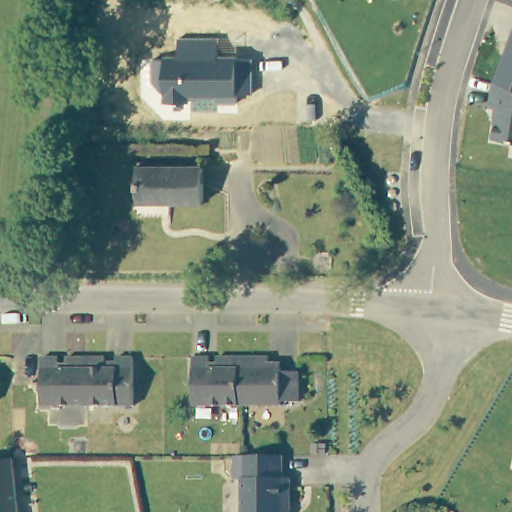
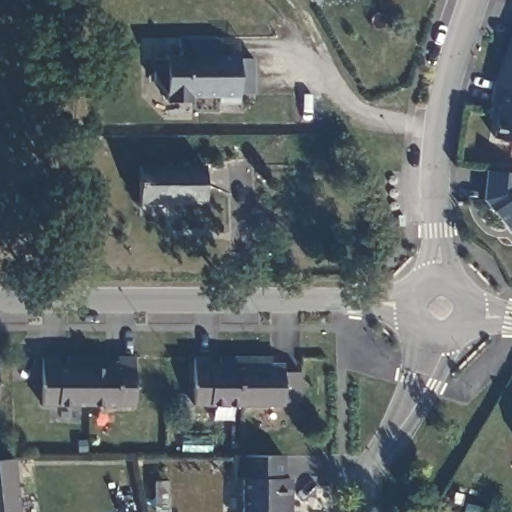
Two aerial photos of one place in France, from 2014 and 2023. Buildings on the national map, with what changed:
unchanged [(492,138),(494,106),(488,106),(492,81),(512,26),(512,140),(492,138)]
unchanged [(237,94),(237,103),(216,103),(216,96),(190,97),(190,101),(165,101),(165,92),(152,81),(152,59),(162,59),(162,56),(179,55),(180,38),(219,39),(220,55),(237,55),(237,59),(252,59),(252,92),(237,94)]
unchanged [(210,198),(143,200),(142,162),(210,160),(210,198)]
new [(512,171),(512,236),(491,212),(483,200),(486,169),(512,171)]
unchanged [(194,356),(212,355),(212,362),(220,362),(220,355),(273,354),(273,366),(287,366),(287,369),(303,369),(302,399),(286,400),(286,404),(194,405),(194,356)]
unchanged [(43,362),(60,362),(60,369),(68,369),(69,362),(107,362),(107,368),(118,367),(119,362),(135,362),(136,411),(44,412),(43,362)]
unchanged [(245,455),(280,455),(280,477),(290,477),(289,501),(280,501),(281,512),(244,512),(246,478),(245,455)]
unchanged [(20,512),(0,512),(0,458),(15,456),(20,512)]

